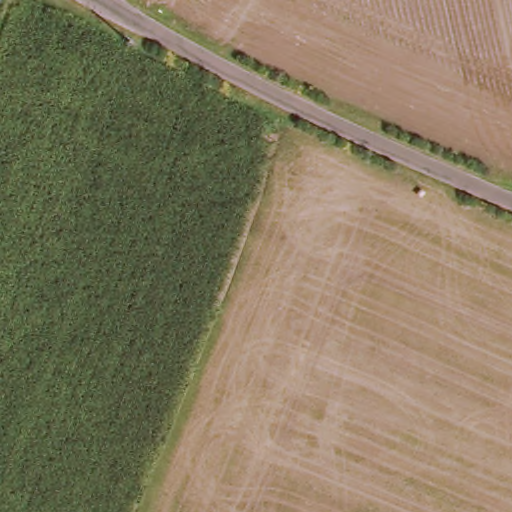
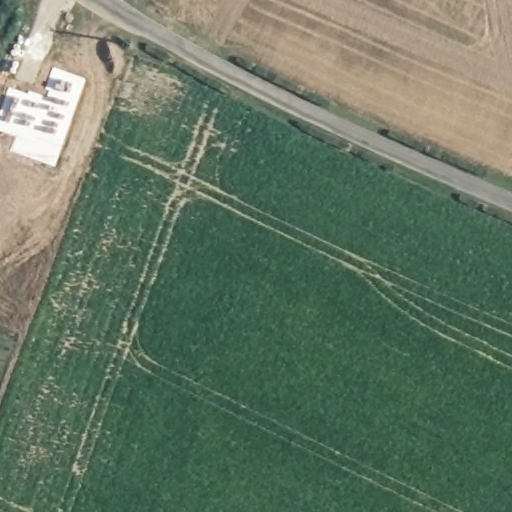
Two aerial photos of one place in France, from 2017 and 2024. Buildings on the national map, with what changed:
new [(10,151),(15,136),(0,131),(0,112),(9,87),(27,93),(29,90),(46,96),(49,89),(45,88),(52,66),(85,77),(55,166),(10,151)]

